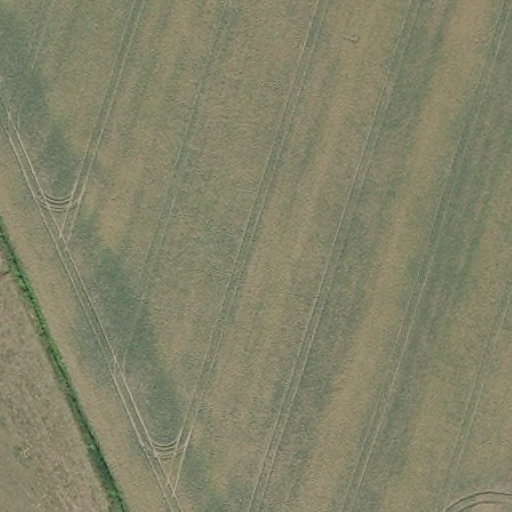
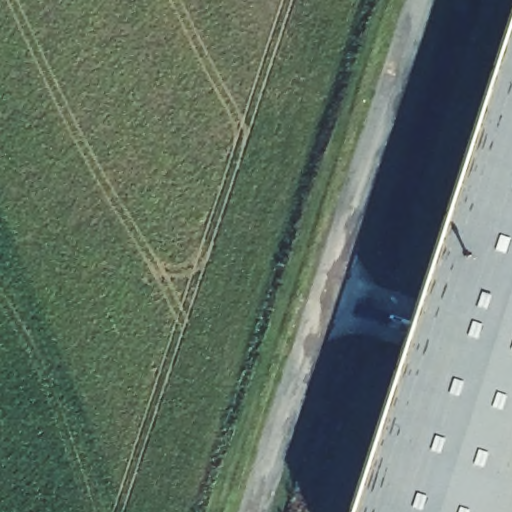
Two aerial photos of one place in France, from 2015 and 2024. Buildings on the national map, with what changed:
new [(363,512),(512,58),(512,512),(363,512)]

